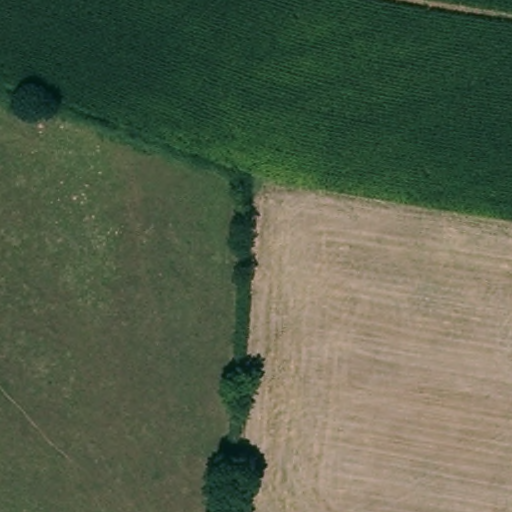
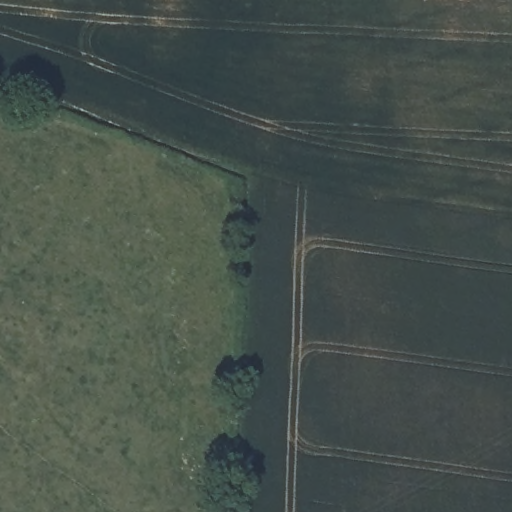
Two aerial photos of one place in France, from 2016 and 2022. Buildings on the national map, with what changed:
[]

